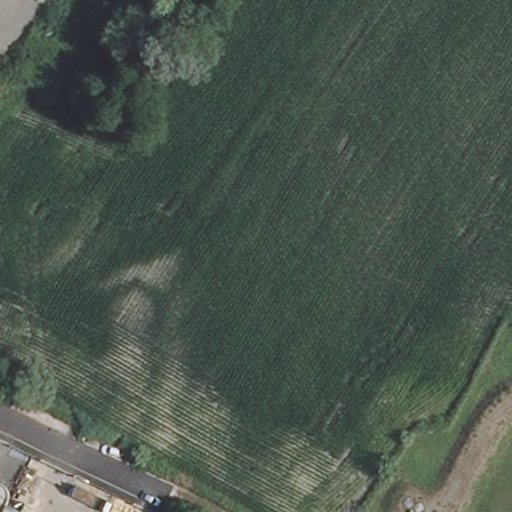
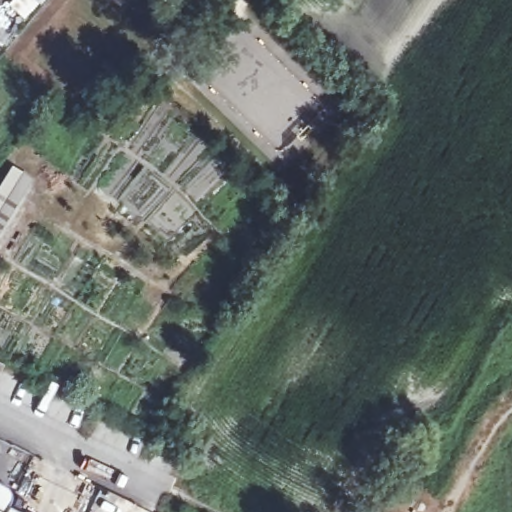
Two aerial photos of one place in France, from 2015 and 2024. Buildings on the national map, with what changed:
new [(30,184),(21,200),(0,235),(0,197),(5,190),(14,174),(30,184)]
unchanged [(1,500),(6,503),(1,512),(0,512),(0,479),(9,485),(1,500)]
unchanged [(6,503),(22,512),(1,512),(6,503)]

